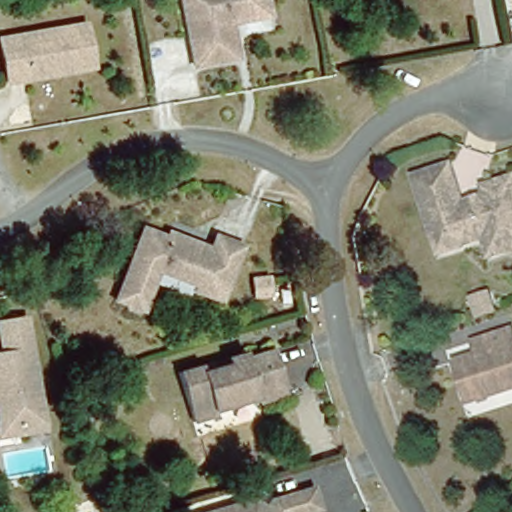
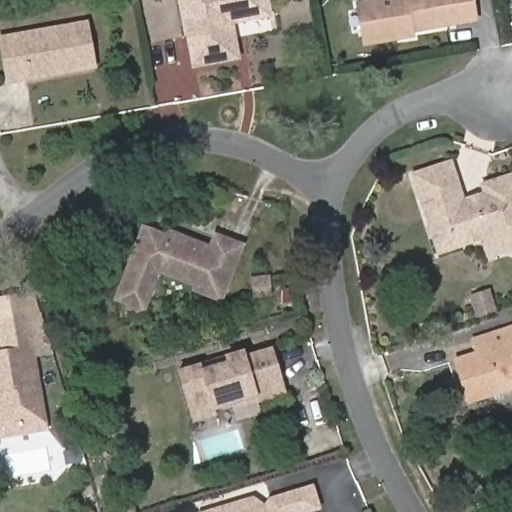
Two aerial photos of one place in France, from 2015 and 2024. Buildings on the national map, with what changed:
unchanged [(267,19),(228,27),(236,63),(192,71),(178,0),(263,0),(267,19)]
new [(363,35),(357,7),(391,0),(473,0),(473,1),(477,19),(452,24),(413,33),(414,37),(402,40),(366,48),(363,35)]
unchanged [(94,68),(7,84),(0,47),(0,42),(83,24),(94,68)]
unchanged [(429,240),(405,181),(447,166),(462,202),(483,196),(481,189),(512,179),(512,253),(506,251),(490,257),(480,239),(462,245),(435,255),(429,240)]
unchanged [(194,291),(195,287),(155,273),(141,311),(137,309),(135,312),(126,309),(127,306),(114,301),(137,231),(160,239),(162,232),(205,247),(208,236),(237,245),(228,272),(223,287),(219,300),(194,291)]
unchanged [(0,424),(0,358),(6,356),(0,333),(0,327),(24,321),(52,425),(53,431),(4,441),(0,424)]
unchanged [(486,333),(504,327),(512,345),(512,386),(506,388),(486,333)]
unchanged [(464,397),(451,360),(471,353),(466,340),(475,337),(486,333),(506,388),(489,394),(467,403),(464,397)]
unchanged [(175,376),(240,353),(242,359),(269,350),(286,394),(257,404),(255,398),(214,412),(215,417),(193,424),(175,376)]
unchanged [(238,507),(243,498),(255,501),(260,492),(301,478),(308,496),(287,503),(289,512),(204,512),(228,504),(238,507)]
demolished [(78,512),(78,511),(104,502),(108,512),(78,512)]

